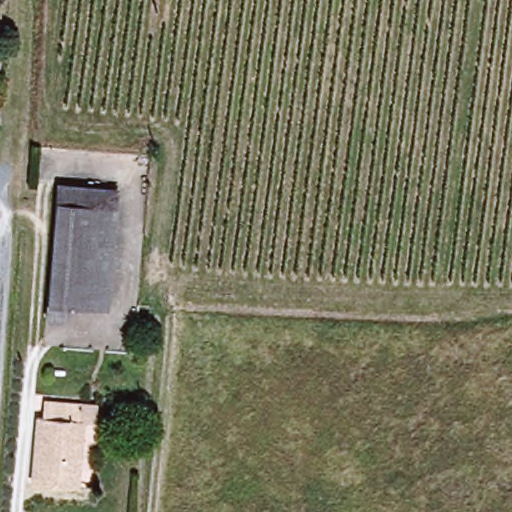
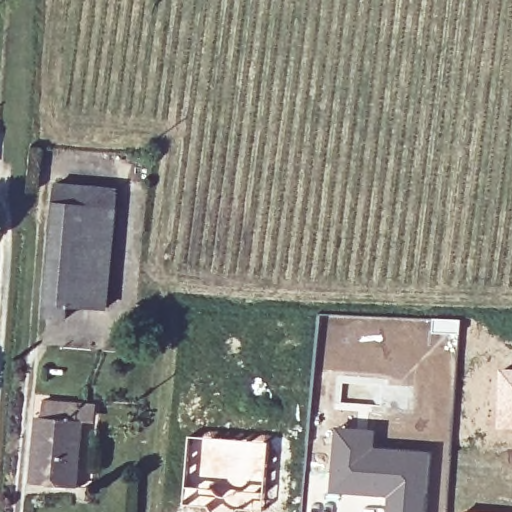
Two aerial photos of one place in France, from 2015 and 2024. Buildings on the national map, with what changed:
unchanged [(115,191),(105,308),(66,305),(64,321),(46,320),(57,187),(115,191)]
new [(512,368),(512,428),(498,428),(500,367),(512,368)]
unchanged [(84,420),(79,482),(31,478),(36,415),(84,420)]
new [(333,427),(377,430),(377,445),(433,450),(427,512),(387,512),(388,495),(330,492),(333,427)]
new [(201,443),(205,444),(205,437),(271,440),(265,504),(258,503),(258,502),(253,503),(234,508),(218,497),(221,480),(199,478),(201,443)]
new [(485,512),(464,512),(464,510),(485,512)]

